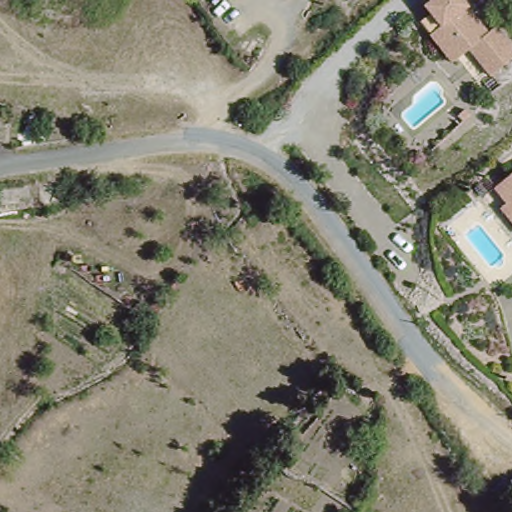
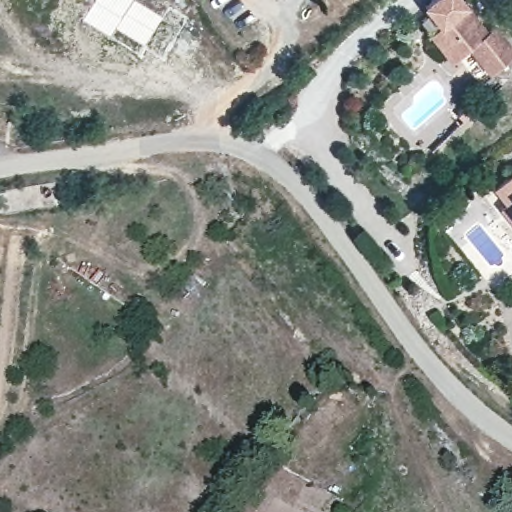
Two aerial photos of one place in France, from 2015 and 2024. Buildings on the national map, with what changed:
new [(135,0),(161,16),(144,46),(115,30),(110,37),(82,20),(94,0),(135,0)]
unchanged [(512,35),(512,63),(495,76),(474,49),(453,61),(423,19),(431,13),(427,4),(434,0),(470,0),(493,31),(507,25),(512,35)]
unchanged [(512,177),(512,210),(493,189),(512,177)]

